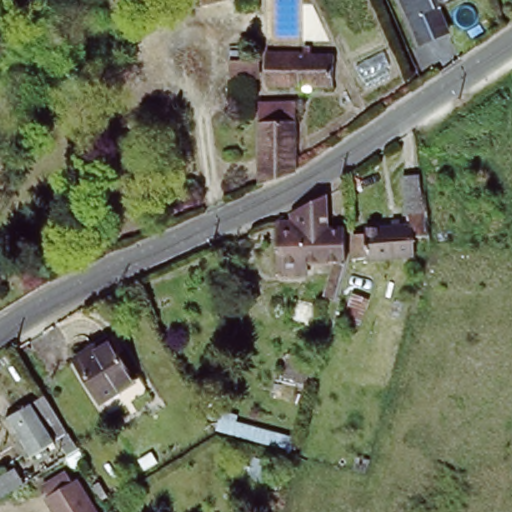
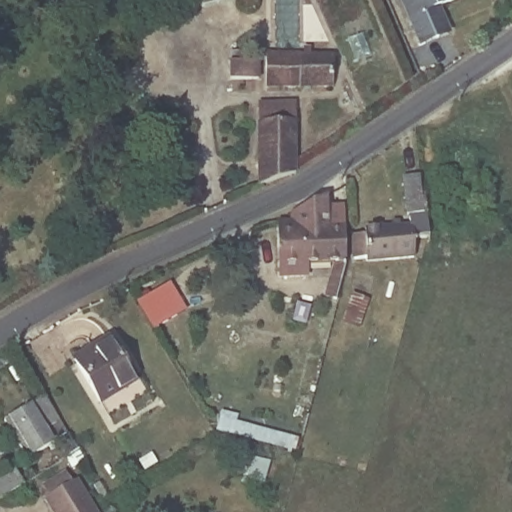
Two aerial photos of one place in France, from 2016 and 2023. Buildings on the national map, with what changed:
unchanged [(442,0),(455,34),(422,48),(402,0),(442,0)]
unchanged [(266,53),(302,52),(302,55),(335,54),(337,89),(267,91),(266,53)]
unchanged [(262,164),(263,105),(302,106),(300,153),(262,164)]
unchanged [(420,176),(425,218),(428,246),(415,248),(415,258),(367,263),(367,259),(365,259),(352,259),(351,235),(366,233),(365,227),(407,223),(402,178),(420,176)]
unchanged [(325,302),(329,280),(308,276),(310,267),(272,260),(277,229),(284,230),(285,220),(337,222),(336,236),(346,238),(342,268),(336,304),(325,302)]
unchanged [(288,315),(306,320),(300,338),(283,333),(288,315)]
unchanged [(108,407),(72,363),(87,352),(107,337),(112,344),(142,381),(108,407)]
unchanged [(85,452),(66,464),(55,446),(32,404),(52,394),(85,452)]
unchanged [(55,446),(25,461),(2,419),(32,404),(55,446)]
unchanged [(0,491),(0,470),(6,466),(16,482),(0,491)]
unchanged [(52,498),(45,485),(64,476),(71,488),(80,483),(96,512),(57,512),(50,499),(52,498)]

